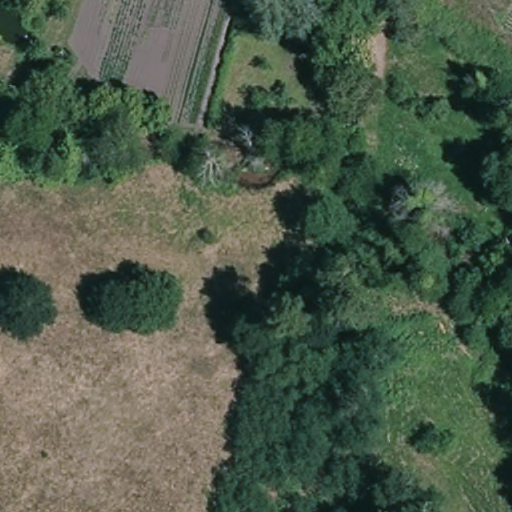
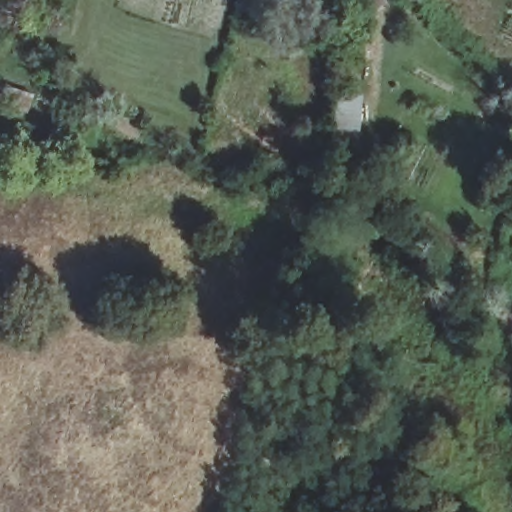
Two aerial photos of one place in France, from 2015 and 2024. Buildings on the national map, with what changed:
unchanged [(363,169),(345,169),(346,155),(364,156),(363,169)]

